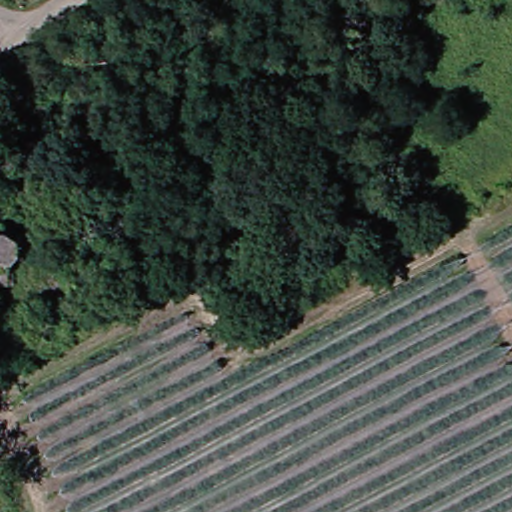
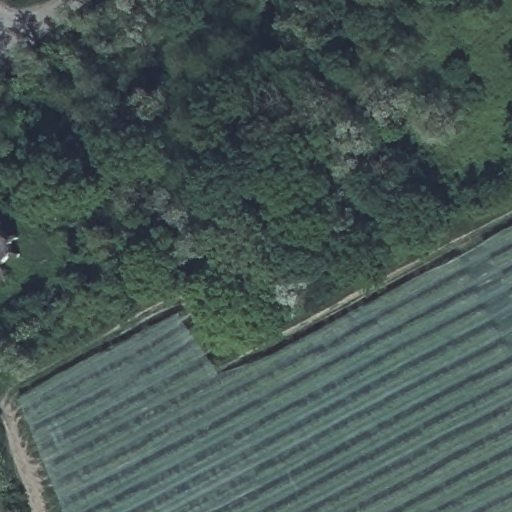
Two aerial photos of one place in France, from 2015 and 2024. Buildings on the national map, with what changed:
unchanged [(9,228),(15,230),(19,234),(22,240),(24,245),(24,251),(22,257),(19,262),(14,266),(0,268),(0,228),(9,228)]

